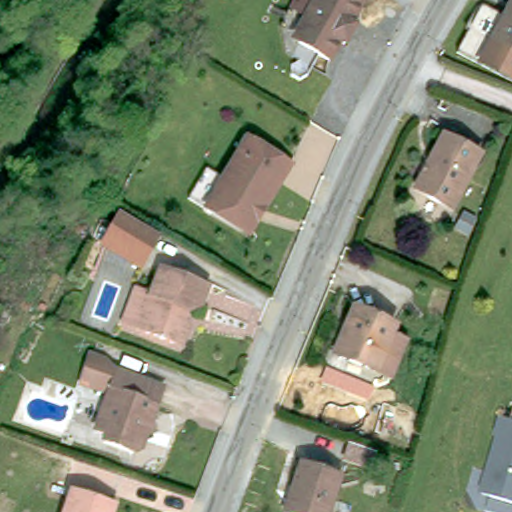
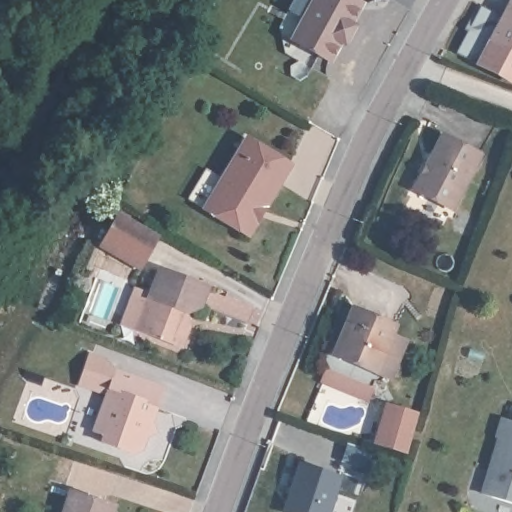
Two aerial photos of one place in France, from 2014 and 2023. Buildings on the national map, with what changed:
unchanged [(361,3),(350,24),(354,25),(343,45),(339,43),(329,61),(298,44),(295,34),(314,0),(356,0),(361,3)]
unchanged [(512,12),(512,80),(463,55),(486,9),(508,20),(512,12)]
unchanged [(413,190),(444,135),(481,156),(453,210),(413,190)]
unchanged [(247,233),(209,209),(192,199),(210,169),(227,179),(251,140),(294,166),(276,196),(251,235),(247,233)]
unchanged [(137,272),(98,250),(118,215),(138,227),(156,237),(137,272)]
unchanged [(140,290),(155,296),(166,267),(213,286),(207,301),(193,310),(190,320),(196,323),(187,345),(142,327),(128,321),(140,290)]
unchanged [(388,370),(374,365),(330,346),(339,325),(343,327),(355,301),(393,318),(390,328),(403,334),(388,370)]
unchanged [(115,372),(116,370),(163,386),(151,420),(156,430),(147,434),(142,447),(133,452),(103,441),(106,433),(95,428),(108,392),(79,382),(90,352),(103,357),(115,372)]
new [(416,416),(406,451),(376,443),(387,407),(416,416)]
unchanged [(501,420),(512,422),(512,502),(482,492),(501,420)]
unchanged [(301,459),(343,473),(330,512),(291,512),(290,511),(284,510),(292,485),(301,459)]
unchanged [(80,493),(118,508),(117,512),(68,512),(76,492),(80,493)]

